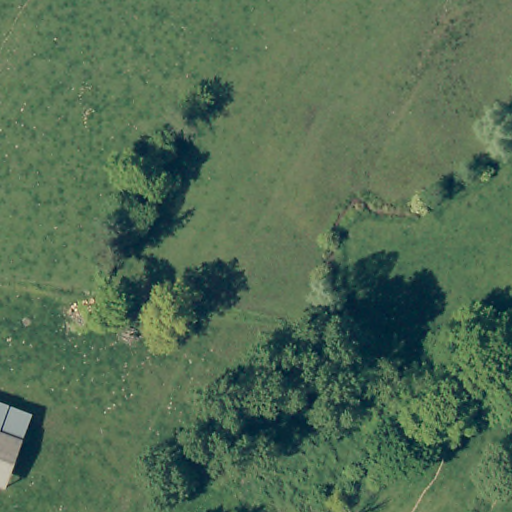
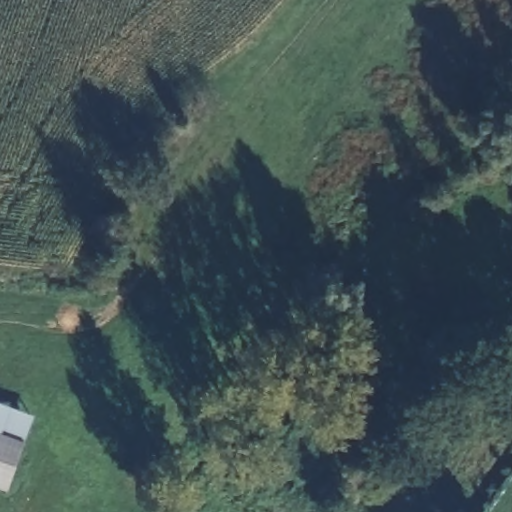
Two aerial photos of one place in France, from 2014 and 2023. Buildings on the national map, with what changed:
unchanged [(4,489),(0,488),(0,405),(31,417),(4,489)]

